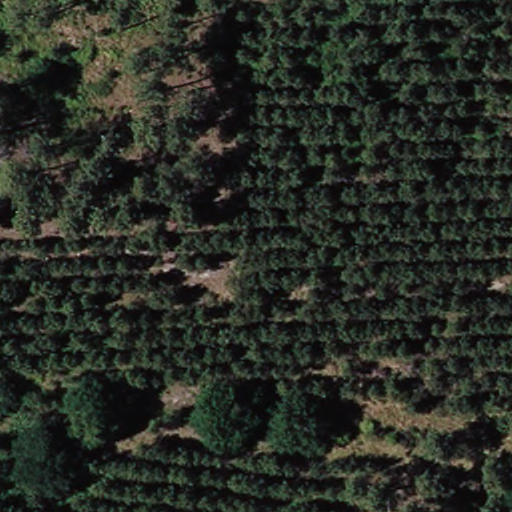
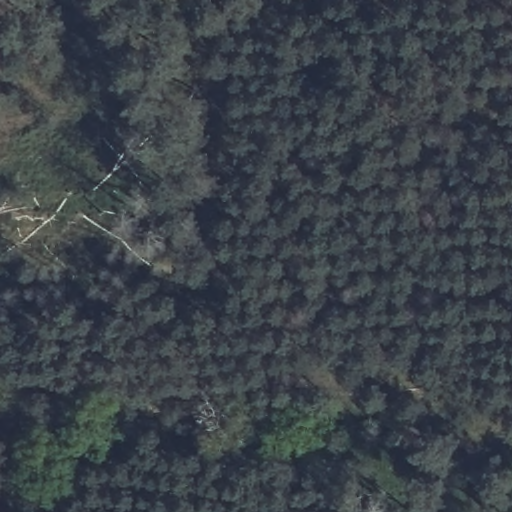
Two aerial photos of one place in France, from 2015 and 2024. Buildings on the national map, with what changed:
[]

